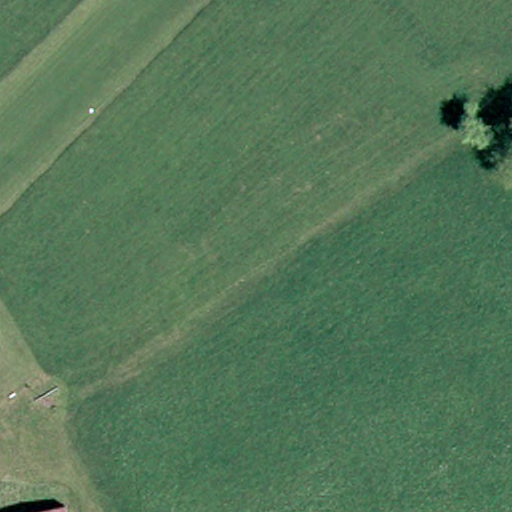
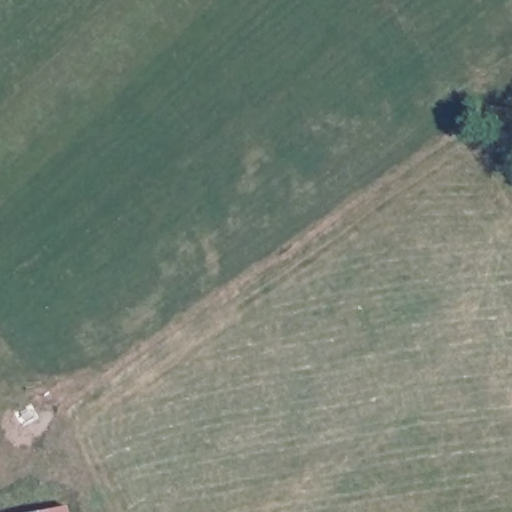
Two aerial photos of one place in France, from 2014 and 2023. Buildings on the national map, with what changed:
unchanged [(69,512),(43,512),(68,507),(69,512)]

